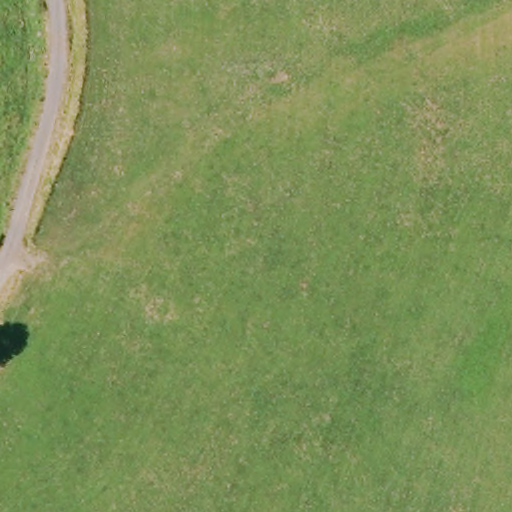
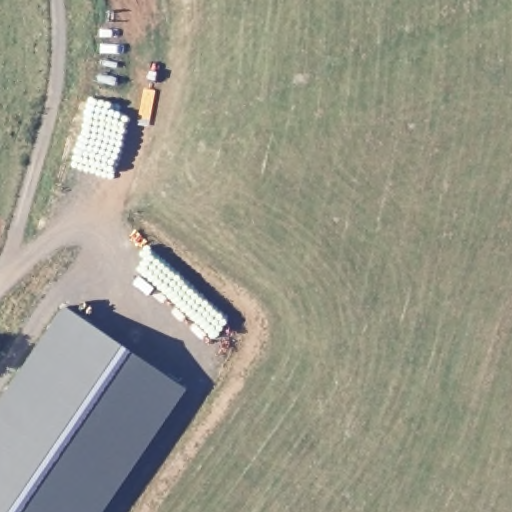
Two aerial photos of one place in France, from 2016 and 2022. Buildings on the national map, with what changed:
new [(184,388),(100,512),(0,512),(0,396),(63,305),(184,388)]

